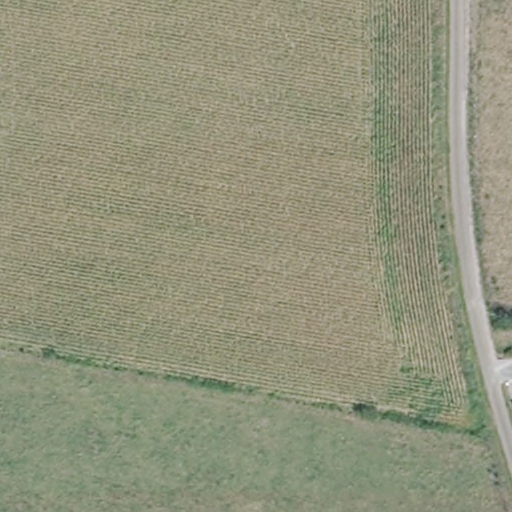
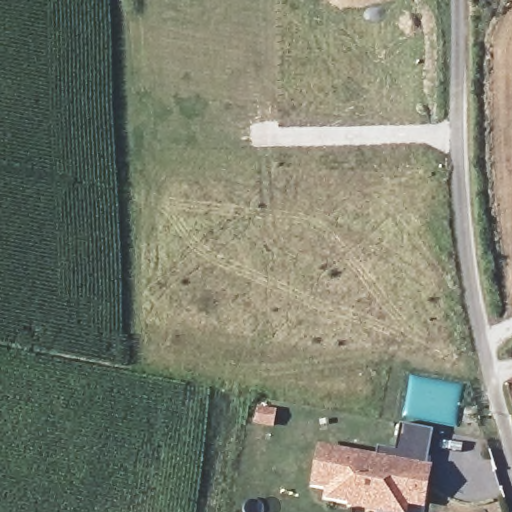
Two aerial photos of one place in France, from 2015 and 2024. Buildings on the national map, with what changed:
new [(260,407),(275,410),(272,425),(257,422),(260,407)]
new [(433,429),(426,464),(432,465),(424,508),(409,507),(408,512),(374,512),(350,507),(348,502),(323,498),(325,488),(311,486),(318,443),(376,453),(377,447),(395,450),(399,424),(433,429)]

